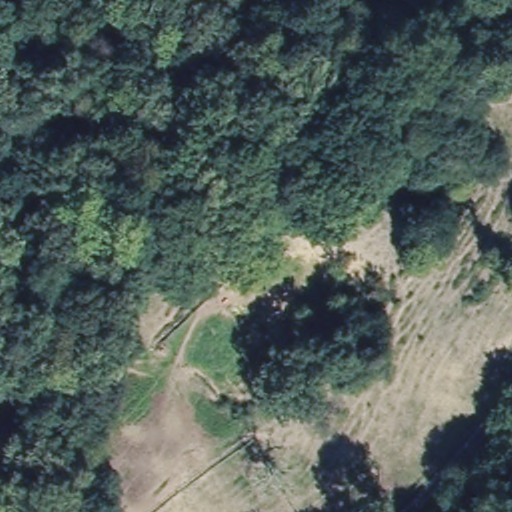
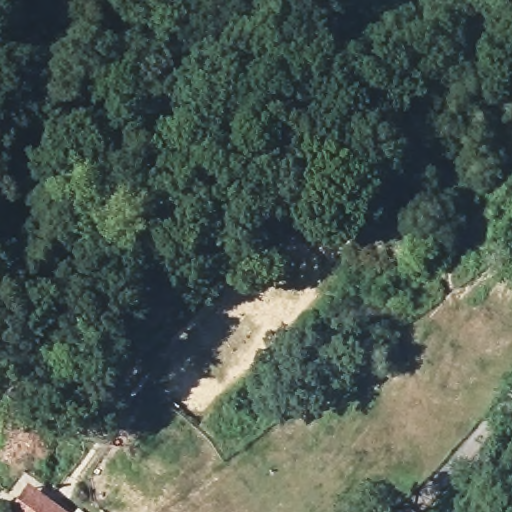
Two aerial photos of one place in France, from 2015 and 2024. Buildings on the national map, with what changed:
new [(66,512),(7,512),(26,484),(66,512)]

